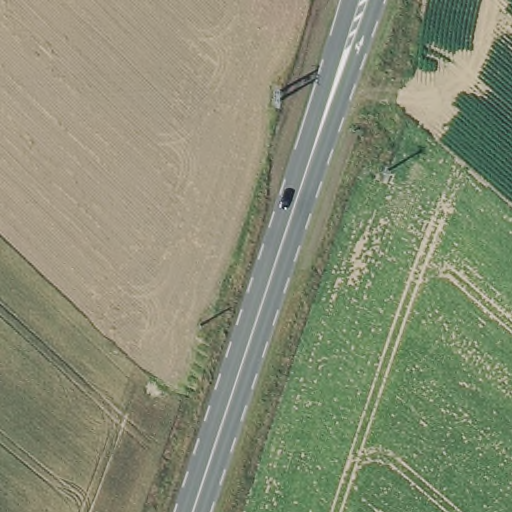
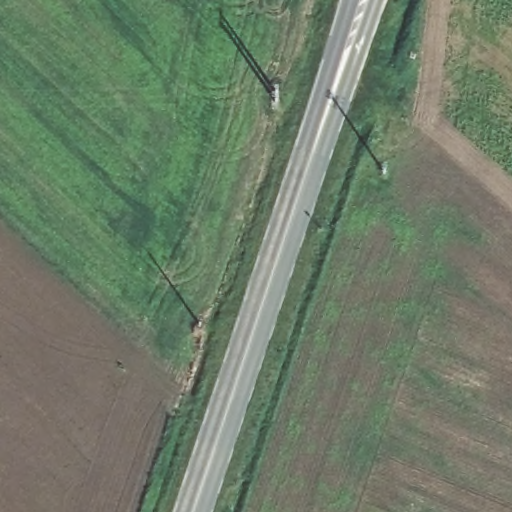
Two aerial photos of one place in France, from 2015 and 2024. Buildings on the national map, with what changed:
[]

